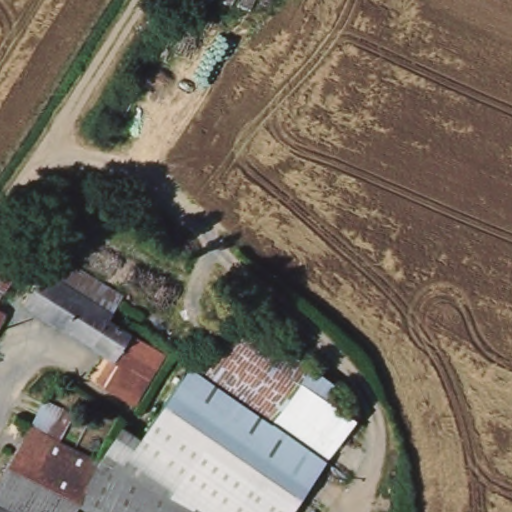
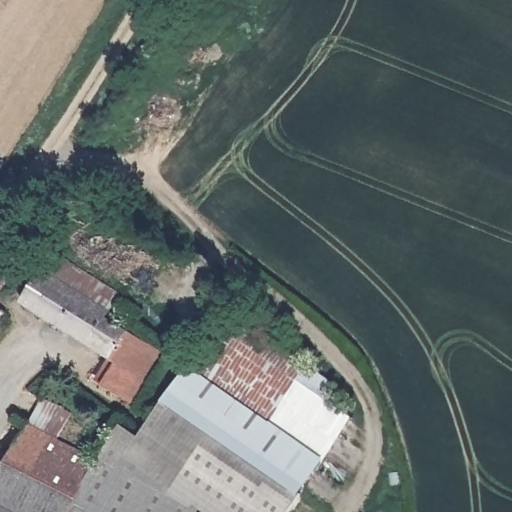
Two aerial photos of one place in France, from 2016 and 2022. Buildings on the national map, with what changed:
unchanged [(9,262),(12,264),(0,282),(0,246),(3,242),(5,240),(18,248),(9,262)]
unchanged [(19,299),(50,251),(86,274),(86,275),(76,292),(60,318),(59,318),(58,320),(56,324),(19,299)]
unchanged [(127,407),(95,385),(110,361),(56,324),(58,320),(59,318),(60,318),(76,292),(86,275),(86,274),(115,292),(107,305),(121,315),(114,330),(156,359),(146,376),(132,398),(127,407)]
unchanged [(238,312),(375,403),(320,486),(183,397),(238,312)]
unchanged [(39,416),(57,388),(67,395),(85,406),(88,409),(71,435),(39,416)]
unchanged [(183,397),(320,486),(304,512),(195,512),(110,460),(112,459),(129,434),(131,431),(135,433),(137,435),(138,435),(139,436),(152,444),(183,397)]
unchanged [(71,435),(75,438),(77,439),(110,460),(195,512),(0,512),(0,480),(39,416),(71,435)]

